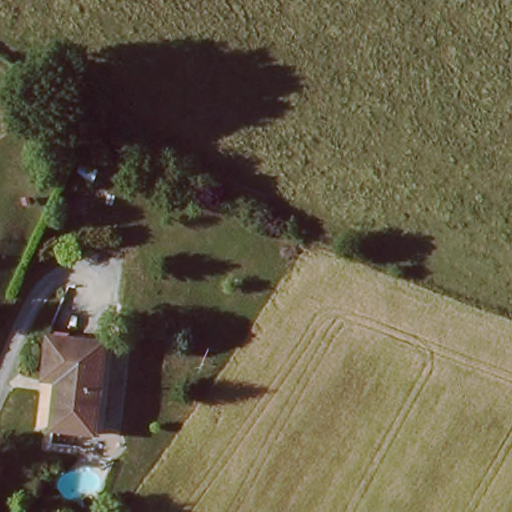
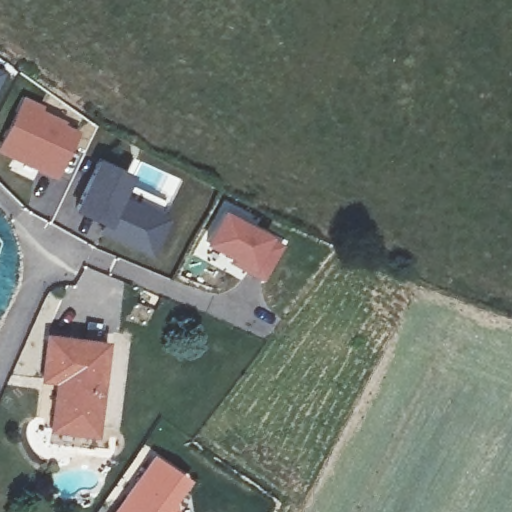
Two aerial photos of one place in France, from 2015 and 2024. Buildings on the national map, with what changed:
new [(3,71),(0,77),(0,70),(3,71)]
new [(0,154),(0,147),(24,95),(44,105),(42,110),(65,121),(64,125),(79,131),(56,179),(0,154)]
new [(152,212),(165,218),(150,251),(110,234),(114,226),(106,222),(76,210),(99,159),(127,173),(124,181),(162,199),(152,212)]
new [(209,244),(226,213),(267,237),(280,246),(263,280),(235,264),(235,259),(209,244)]
unchanged [(50,432),(51,415),(54,381),(35,379),(39,334),(103,342),(96,420),(94,435),(50,432)]
new [(154,454),(189,480),(176,498),(178,512),(114,512),(154,454)]

